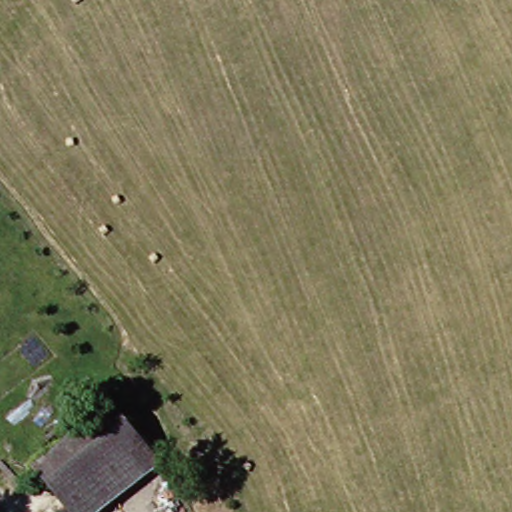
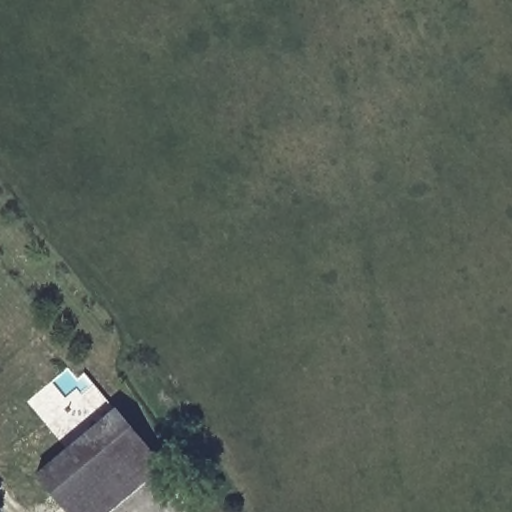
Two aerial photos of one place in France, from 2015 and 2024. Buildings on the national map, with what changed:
unchanged [(60,512),(26,473),(104,406),(157,466),(103,512),(60,512)]

